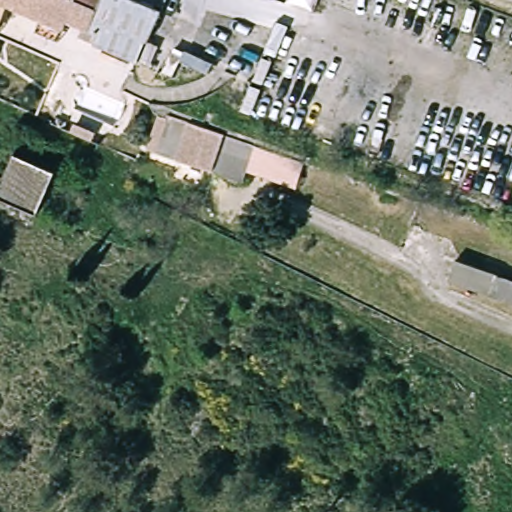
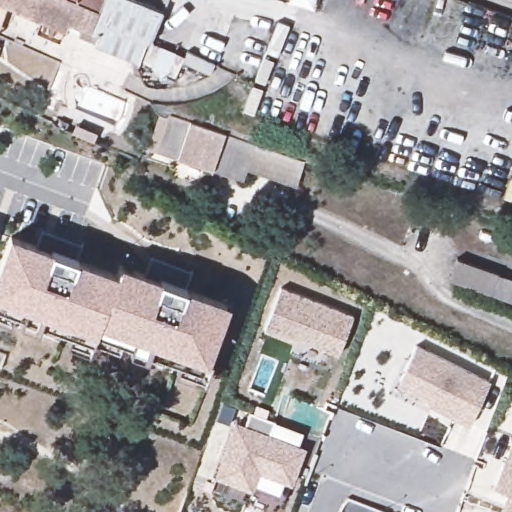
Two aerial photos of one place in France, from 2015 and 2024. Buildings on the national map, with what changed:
unchanged [(6,0),(9,2),(0,27),(0,0),(6,0)]
unchanged [(139,60),(79,36),(83,27),(68,21),(60,40),(37,30),(42,16),(9,2),(6,0),(139,0),(162,10),(139,60)]
new [(313,0),(309,14),(286,7),(288,0),(313,0)]
unchanged [(307,161),(298,186),(248,170),(244,181),(169,157),(151,151),(158,130),(164,115),(307,161)]
demolished [(102,136),(98,145),(77,135),(82,126),(102,136)]
demolished [(39,211),(0,193),(0,188),(17,150),(59,170),(39,211)]
new [(35,242),(42,231),(82,245),(80,258),(117,272),(121,262),(143,271),(150,256),(192,272),(186,287),(229,302),(209,360),(212,362),(204,383),(176,374),(179,363),(150,351),(147,357),(128,350),(130,345),(122,341),(118,351),(93,341),(89,352),(67,344),(72,333),(41,320),(38,327),(20,321),(22,316),(13,313),(10,321),(0,318),(0,257),(9,233),(35,242)]
unchanged [(457,255),(512,275),(512,300),(448,275),(457,255)]
new [(281,286),(353,315),(339,353),(298,338),(296,342),(295,342),(264,331),(281,286)]
new [(426,400),(395,386),(415,345),(489,380),(470,426),(424,406),(426,400)]
new [(244,429),(250,413),(275,423),(270,438),(278,441),(304,451),(291,485),(258,472),(251,490),(217,477),(236,425),(244,429)]
new [(512,512),(508,512),(501,510),(506,493),(493,488),(512,440),(512,512)]

